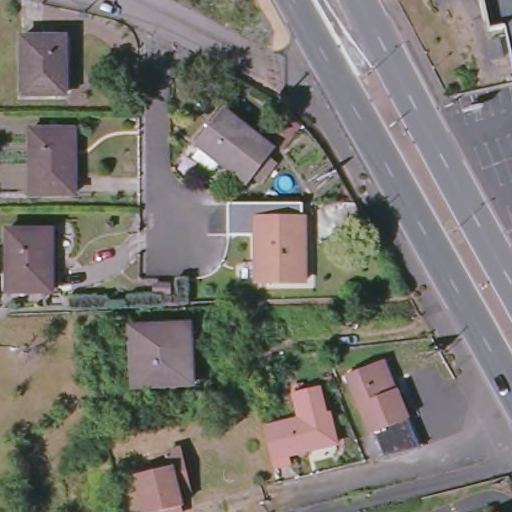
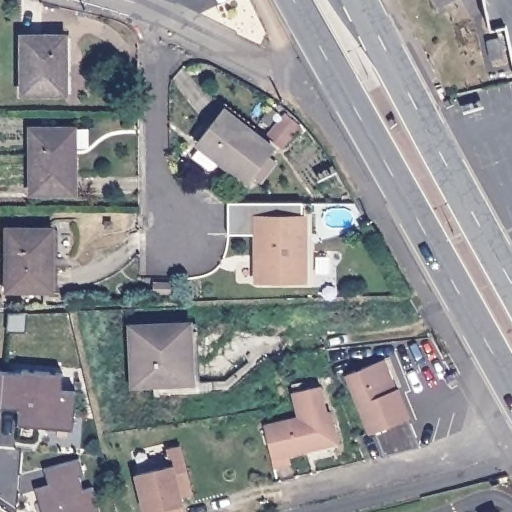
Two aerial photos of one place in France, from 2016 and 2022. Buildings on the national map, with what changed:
unchanged [(505,27),(489,30),(483,0),(512,0),(512,60),(505,27)]
unchanged [(65,36),(65,94),(23,95),(22,37),(65,36)]
unchanged [(499,39),(504,58),(492,60),(488,41),(499,39)]
unchanged [(216,165),(199,153),(208,143),(203,140),(229,106),(278,143),(251,177),(226,158),(221,165),(216,165)]
unchanged [(32,194),(31,130),(68,129),(74,129),(74,159),(74,194),(32,194)]
unchanged [(304,217),(305,281),(256,282),(256,217),(304,217)]
unchanged [(53,230),(53,291),(8,291),(8,230),(53,230)]
unchanged [(191,324),(193,384),(133,386),(131,326),(191,324)]
unchanged [(371,434),(347,375),(381,361),(385,360),(397,389),(409,418),(371,434)]
new [(21,372),(21,368),(63,372),(61,389),(75,390),(73,415),(70,415),(69,425),(39,422),(38,427),(16,425),(18,408),(1,407),(4,370),(21,372)]
new [(1,407),(0,407),(0,370),(4,370),(1,407)]
unchanged [(294,392),(319,386),(326,412),(329,411),(337,443),(272,458),(264,426),(299,417),(294,392)]
unchanged [(160,512),(150,512),(141,474),(176,465),(172,451),(186,447),(197,493),(184,496),(186,506),(188,512),(164,512),(164,511),(160,512)]
new [(78,461),(83,473),(79,475),(84,491),(94,488),(100,512),(44,512),(39,489),(53,485),(48,468),(78,461)]

